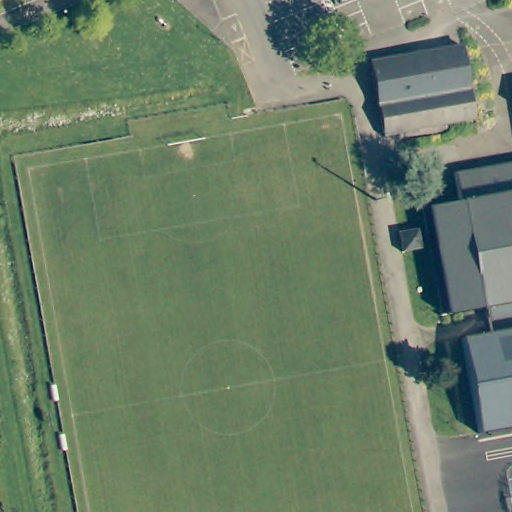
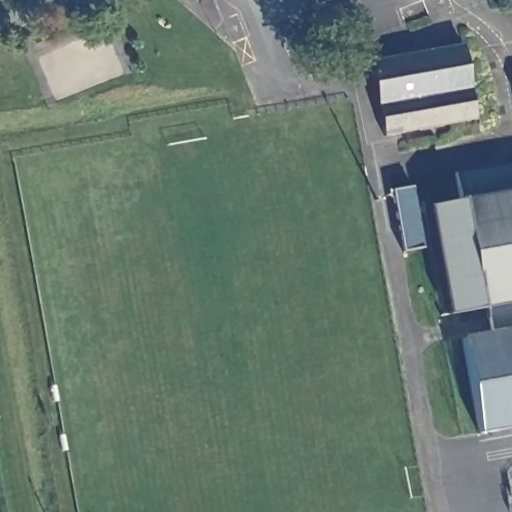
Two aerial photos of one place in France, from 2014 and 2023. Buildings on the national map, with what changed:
unchanged [(371,58),(462,41),(475,113),(401,126),(401,129),(384,132),(371,58)]
unchanged [(462,201),(457,173),(512,163),(512,428),(479,434),(462,338),(492,332),(488,308),(448,315),(428,206),(462,201)]
new [(391,191),(413,186),(424,249),(401,253),(391,191)]
demolished [(423,248),(403,252),(399,232),(419,228),(423,248)]

